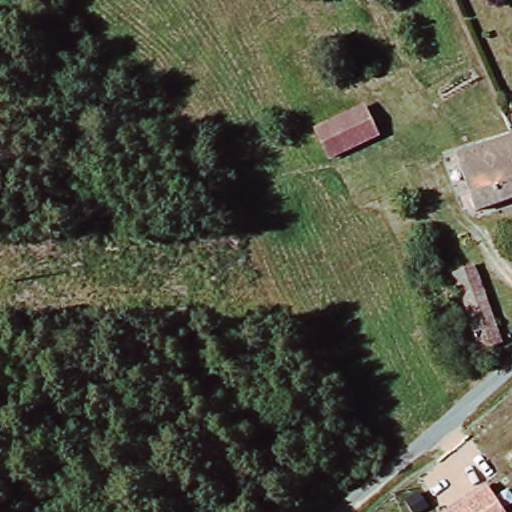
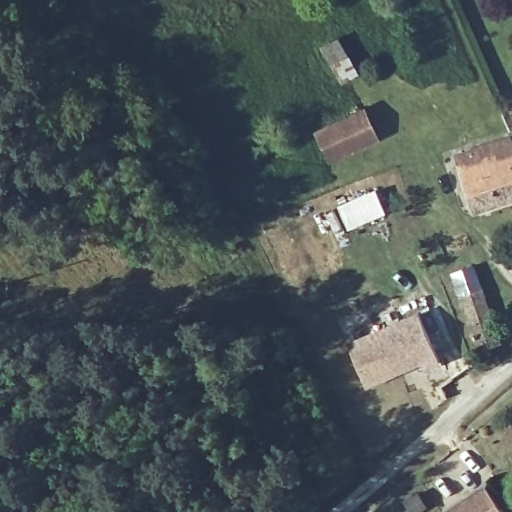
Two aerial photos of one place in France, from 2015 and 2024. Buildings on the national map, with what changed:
unchanged [(312,131),(313,130),(336,118),(361,106),(374,134),(351,145),(328,156),(323,158),(312,131)]
unchanged [(512,140),(512,152),(507,141),(512,140)]
unchanged [(456,160),(507,141),(512,152),(512,203),(477,216),(456,160)]
unchanged [(479,351),(450,274),(475,265),(502,343),(479,351)]
new [(348,344),(419,314),(437,359),(368,386),(348,344)]
unchanged [(504,512),(445,512),(486,485),(504,512)]

